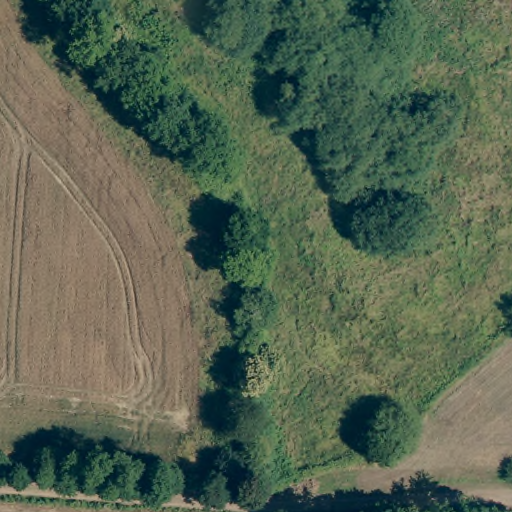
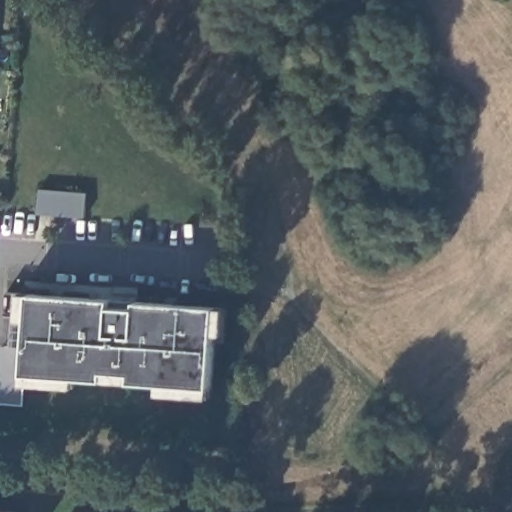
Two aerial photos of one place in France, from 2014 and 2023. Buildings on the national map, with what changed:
new [(38,185),(89,188),(86,211),(38,206),(38,185)]
new [(225,335),(215,335),(211,388),(210,397),(157,395),(160,385),(75,378),(75,388),(23,385),(21,405),(0,403),(0,360),(1,347),(26,349),(28,318),(5,316),(6,293),(31,294),(111,301),(111,308),(137,309),(137,302),(218,308),(226,308),(225,335)]

